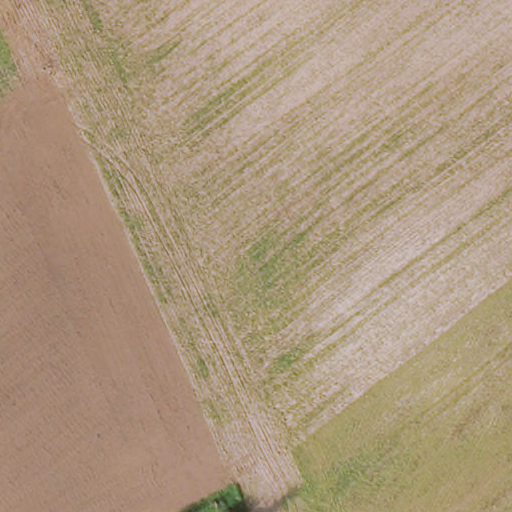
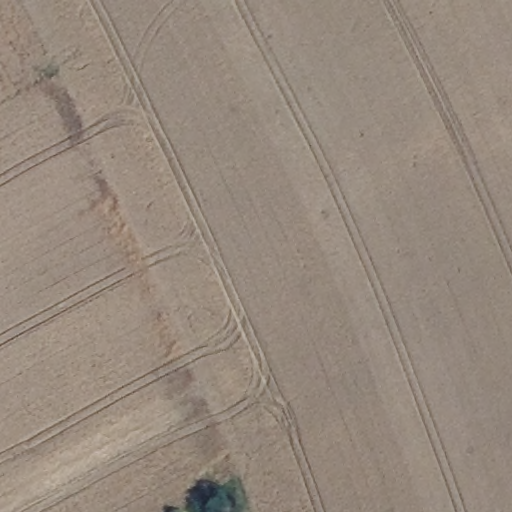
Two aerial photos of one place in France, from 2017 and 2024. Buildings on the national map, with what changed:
unchanged [(52,54),(65,47),(70,59),(57,66),(52,54)]

